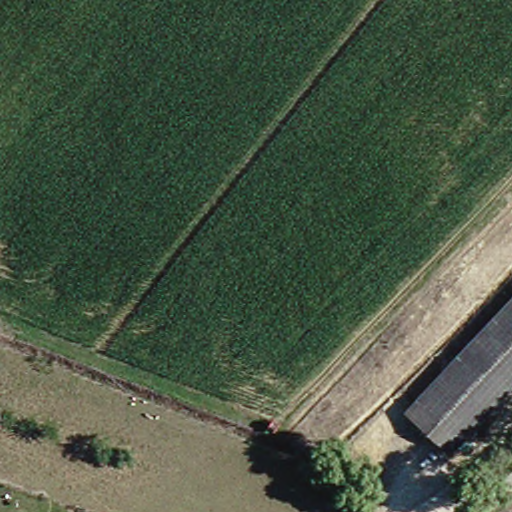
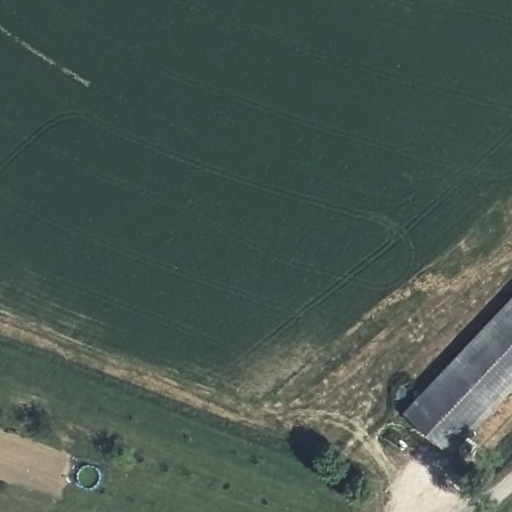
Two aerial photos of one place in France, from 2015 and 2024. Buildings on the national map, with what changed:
unchanged [(512,296),(512,383),(438,458),(432,453),(416,437),(394,416),(512,296)]

